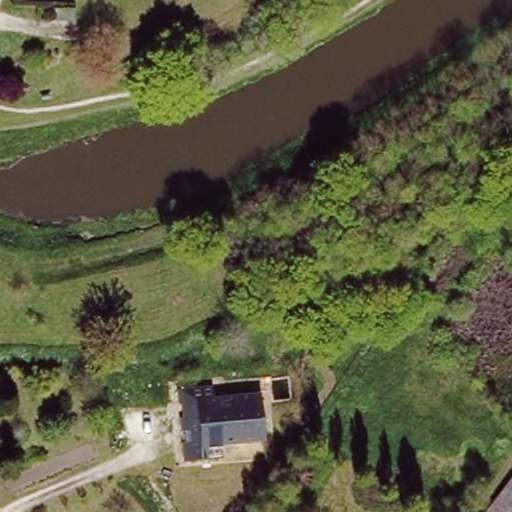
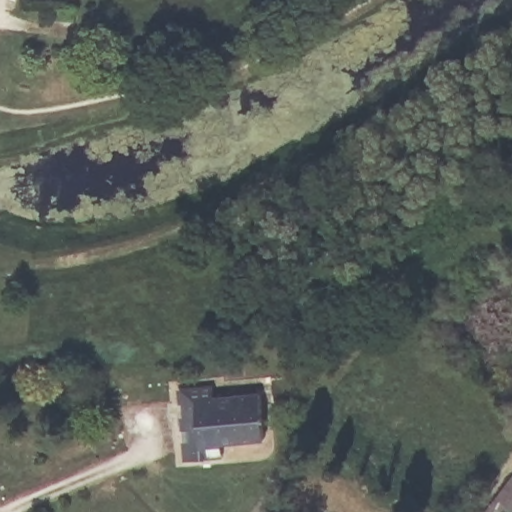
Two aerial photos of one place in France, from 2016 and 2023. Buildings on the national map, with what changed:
unchanged [(218,398),(262,395),(266,437),(227,440),(227,457),(187,459),(184,414),(187,414),(186,400),(182,401),(181,385),(217,382),(218,398)]
unchanged [(483,512),(512,475),(512,512),(483,512)]

